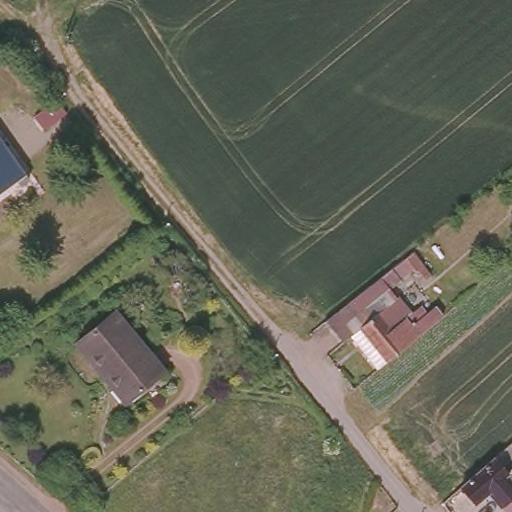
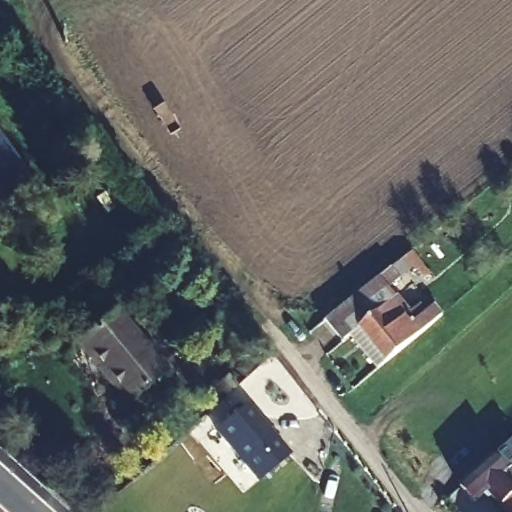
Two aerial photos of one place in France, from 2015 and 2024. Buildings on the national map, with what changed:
unchanged [(0,191),(0,140),(25,173),(0,191)]
unchanged [(347,334),(384,302),(397,317),(400,313),(408,322),(422,310),(399,280),(339,330),(329,317),(397,261),(440,312),(375,367),(347,334)]
unchanged [(116,311),(164,371),(123,404),(75,342),(116,311)]
new [(290,455),(258,482),(217,432),(250,403),(290,455)]
unchanged [(505,470),(512,477),(512,512),(502,512),(493,502),(489,505),(485,501),(477,507),(464,492),(512,449),(512,464),(505,470)]

